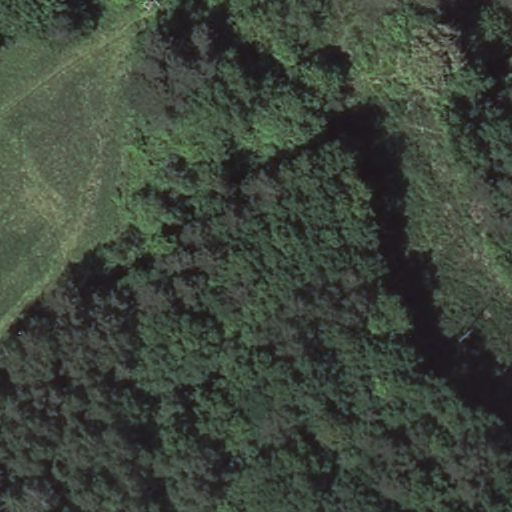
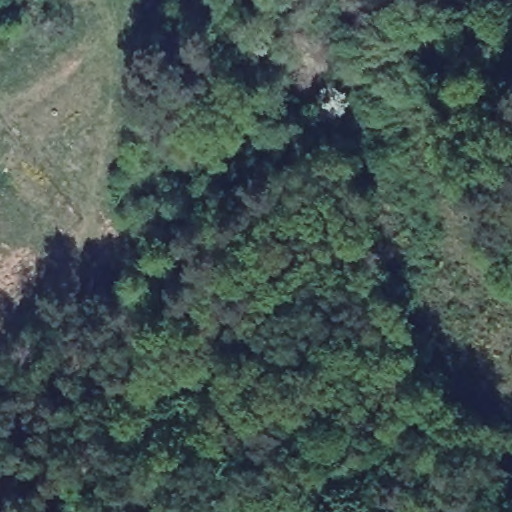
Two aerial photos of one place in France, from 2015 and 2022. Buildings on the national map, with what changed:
[]

